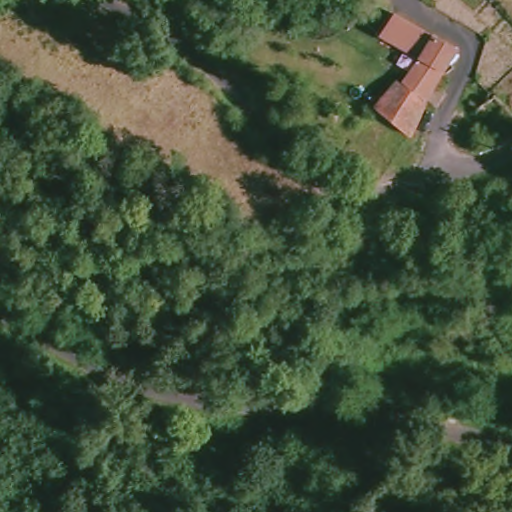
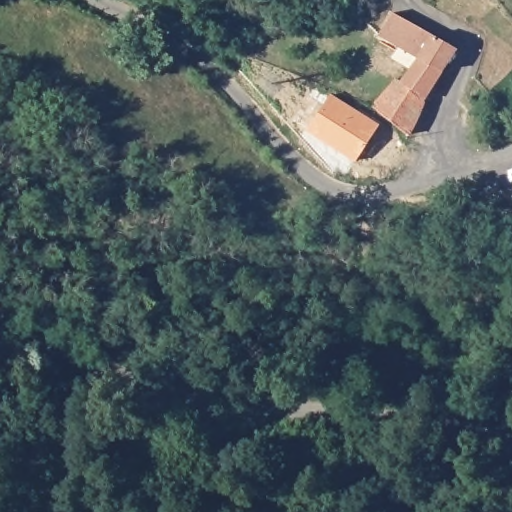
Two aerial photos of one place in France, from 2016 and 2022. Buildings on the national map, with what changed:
unchanged [(373,101),(388,81),(391,83),(426,31),(449,49),(434,73),(417,101),(404,126),(373,101)]
new [(308,131),(331,94),(379,124),(356,162),(308,131)]

